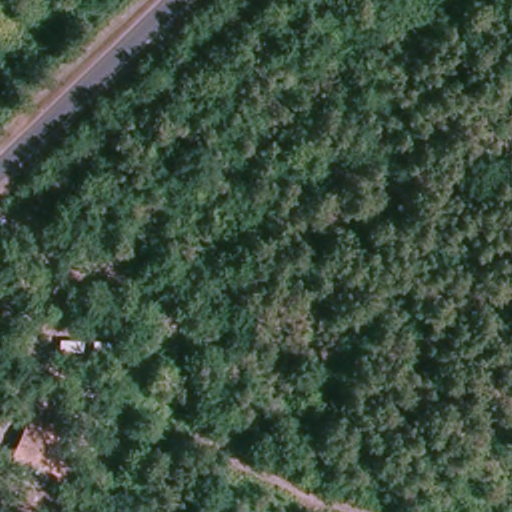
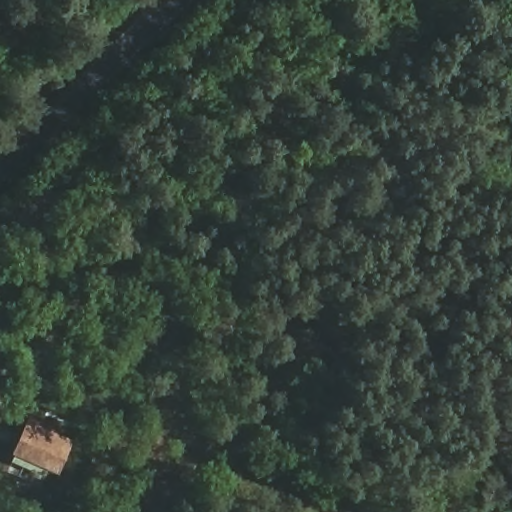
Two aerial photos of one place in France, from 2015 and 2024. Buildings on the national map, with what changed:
unchanged [(18,459),(27,435),(31,428),(73,446),(70,452),(59,476),(18,459)]

